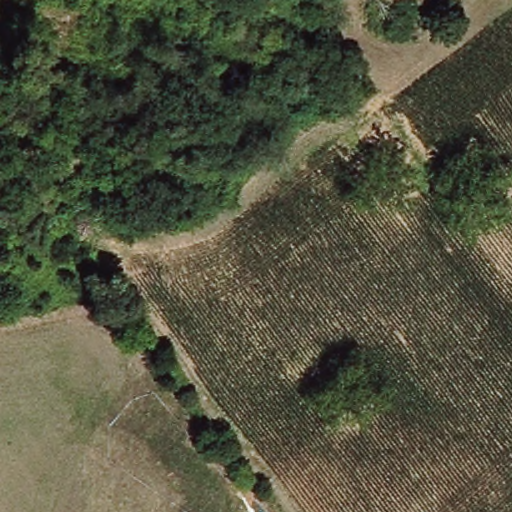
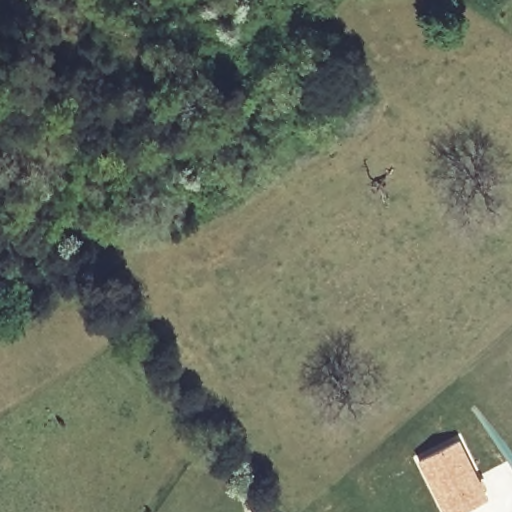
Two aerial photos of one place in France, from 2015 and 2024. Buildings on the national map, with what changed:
new [(490,499),(463,512),(444,512),(418,460),(461,440),(490,499)]

